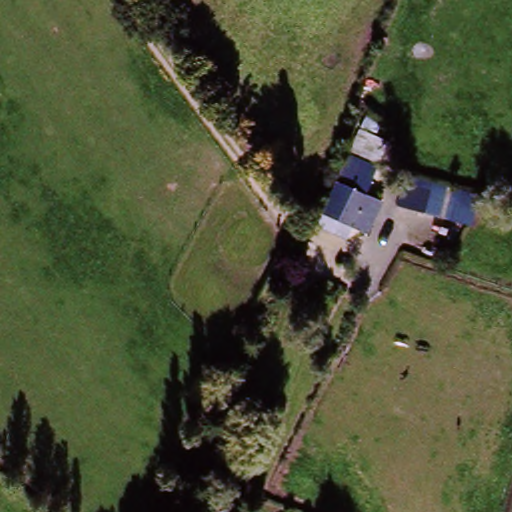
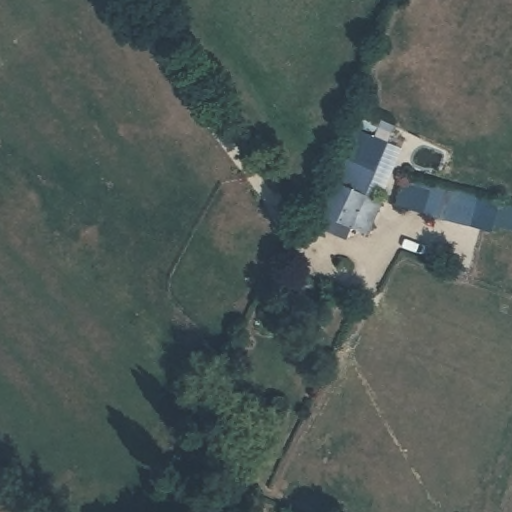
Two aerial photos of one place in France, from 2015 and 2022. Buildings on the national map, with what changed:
unchanged [(388,142),(367,196),(382,203),(369,237),(352,230),(347,242),(314,227),(355,128),(388,142)]
unchanged [(478,196),(470,226),(395,205),(404,176),(478,196)]

